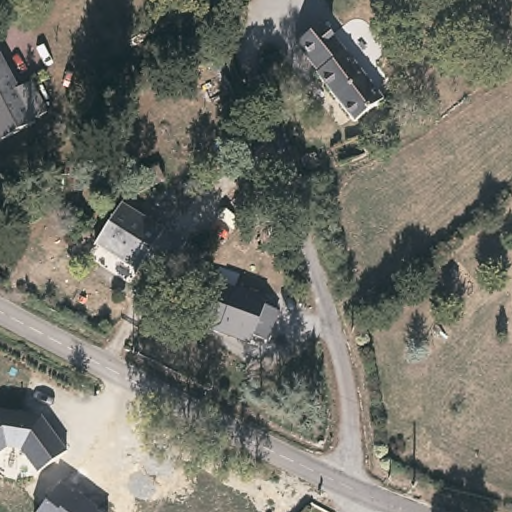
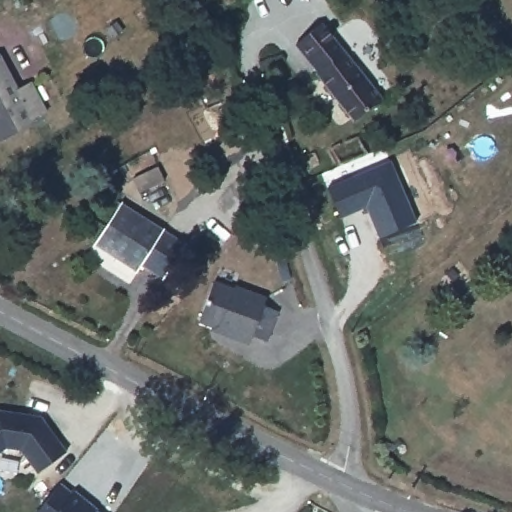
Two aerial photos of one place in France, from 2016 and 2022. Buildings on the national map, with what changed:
unchanged [(381,97),(351,120),(312,71),(316,67),(295,45),(321,25),(340,47),(381,97)]
unchanged [(29,80),(46,112),(31,120),(35,126),(0,143),(0,64),(13,88),(29,80)]
new [(390,161),(415,222),(378,236),(366,205),(338,217),(327,188),(390,161)]
unchanged [(163,163),(169,179),(144,190),(137,175),(163,163)]
unchanged [(165,228),(137,273),(96,247),(126,202),(165,228)]
unchanged [(255,300),(252,307),(266,313),(255,341),(241,336),(239,343),(208,332),(209,328),(189,321),(201,284),(222,292),(224,288),(255,300)]
unchanged [(44,416),(65,453),(37,473),(21,451),(5,448),(0,452),(0,407),(1,406),(44,416)]
unchanged [(75,496),(77,492),(97,508),(102,512),(39,512),(62,485),(75,496)]

